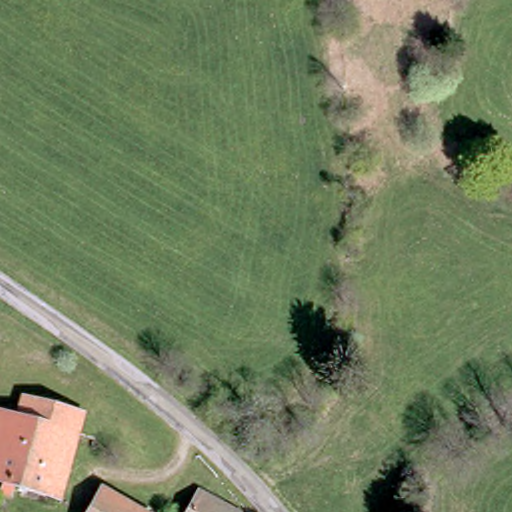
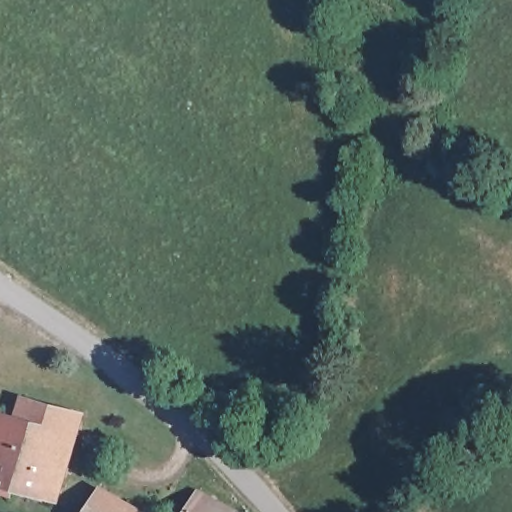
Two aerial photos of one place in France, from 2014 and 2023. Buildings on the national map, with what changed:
unchanged [(27,502),(10,497),(13,489),(0,485),(0,419),(17,423),(24,398),(48,405),(83,416),(75,438),(57,503),(29,495),(27,502)]
unchanged [(135,512),(96,512),(106,495),(135,512)]
unchanged [(183,512),(189,498),(227,512),(183,512)]

